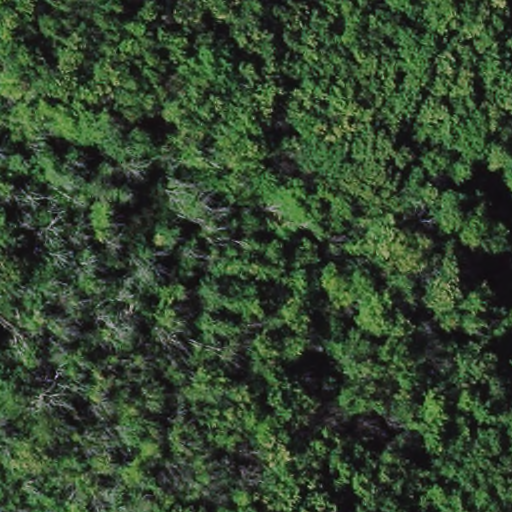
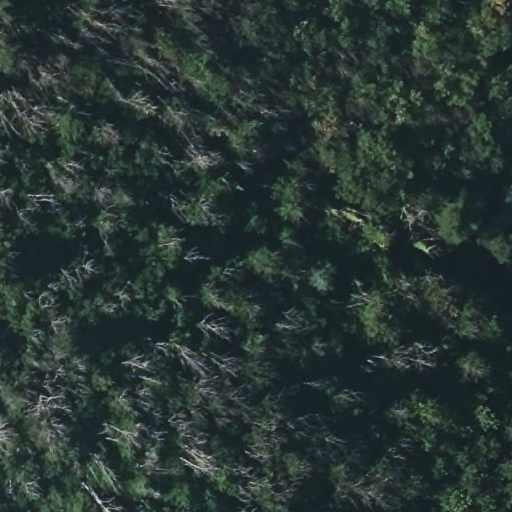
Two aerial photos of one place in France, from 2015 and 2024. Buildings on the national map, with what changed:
unchanged [(408,75),(399,61),(412,52),(417,62),(421,64),(408,75)]
unchanged [(408,110),(378,98),(384,79),(414,91),(437,99),(424,134),(402,127),(408,110)]

